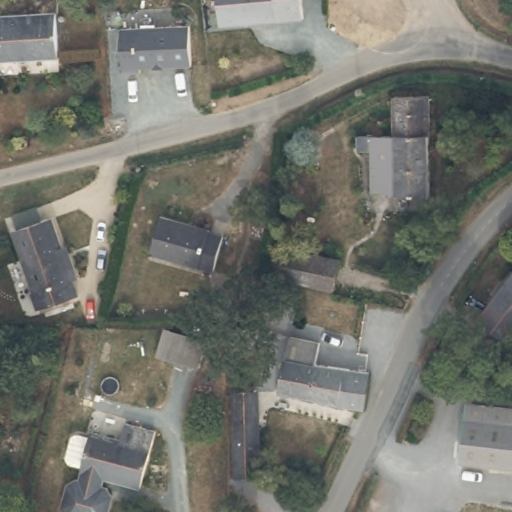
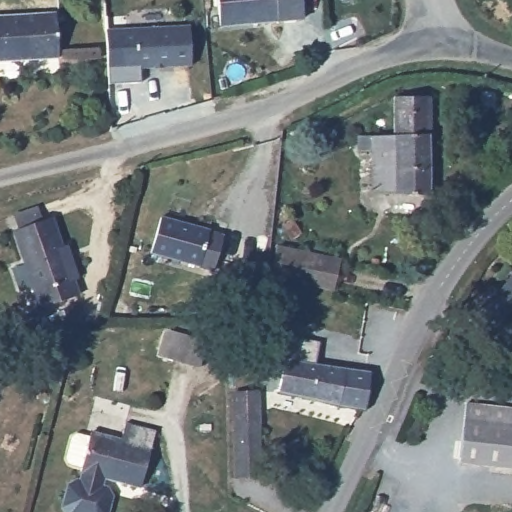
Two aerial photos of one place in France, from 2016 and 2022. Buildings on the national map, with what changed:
unchanged [(203,0),(287,0),(288,22),(204,26),(203,0)]
unchanged [(20,18),(60,16),(61,60),(23,62),(20,18)]
unchanged [(0,19),(20,18),(23,62),(0,64),(0,19)]
unchanged [(140,65),(140,69),(123,70),(121,26),(190,24),(191,63),(163,64),(163,65),(154,65),(154,64),(140,65)]
unchanged [(394,141),(392,85),(428,83),(429,143),(394,141)]
unchanged [(394,141),(429,143),(431,202),(374,202),(372,159),(360,159),(359,142),(394,141)]
unchanged [(31,297),(35,295),(14,228),(48,216),(75,296),(37,310),(31,297)]
unchanged [(164,257),(165,252),(149,245),(158,217),(224,237),(213,272),(164,257)]
unchanged [(268,274),(272,245),(345,257),(342,284),(342,288),(320,286),(295,282),(293,305),(266,302),(268,279),(268,274)]
unchanged [(512,273),(512,315),(492,298),(512,273)]
unchanged [(505,343),(475,319),(492,298),(512,315),(512,334),(505,343)]
unchanged [(157,361),(163,336),(187,341),(189,328),(213,329),(209,347),(205,371),(157,361)]
unchanged [(274,395),(286,340),(312,345),(307,365),(317,367),(309,402),(274,395)]
unchanged [(309,402),(317,367),(371,378),(364,411),(356,411),(309,402)]
unchanged [(230,482),(233,400),(258,398),(256,482),(230,482)]
unchanged [(454,463),(461,405),(512,410),(512,470),(454,463)]
unchanged [(115,498),(111,512),(66,512),(66,511),(71,489),(79,483),(82,484),(84,475),(82,475),(83,470),(71,467),(69,463),(73,441),(78,438),(90,441),(91,435),(119,442),(123,426),(151,432),(138,487),(101,479),(100,488),(109,490),(115,498)]

